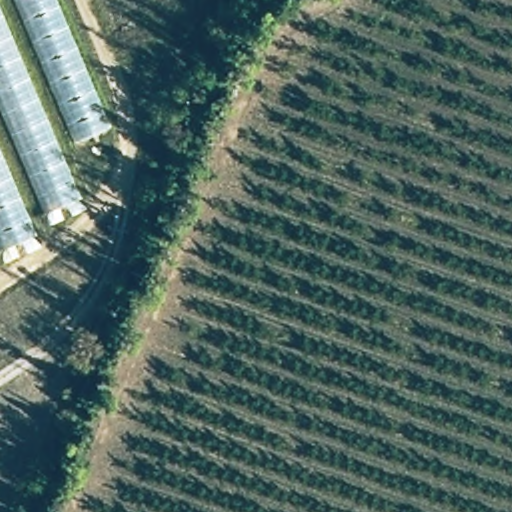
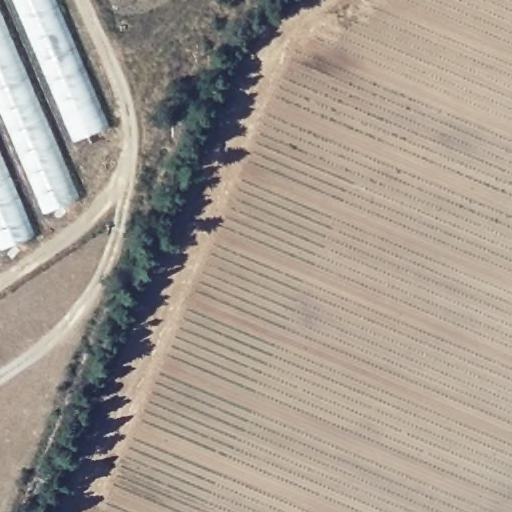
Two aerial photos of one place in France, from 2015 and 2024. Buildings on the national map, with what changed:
unchanged [(58,152),(80,199),(0,252),(0,0),(48,0),(104,131),(58,152)]

